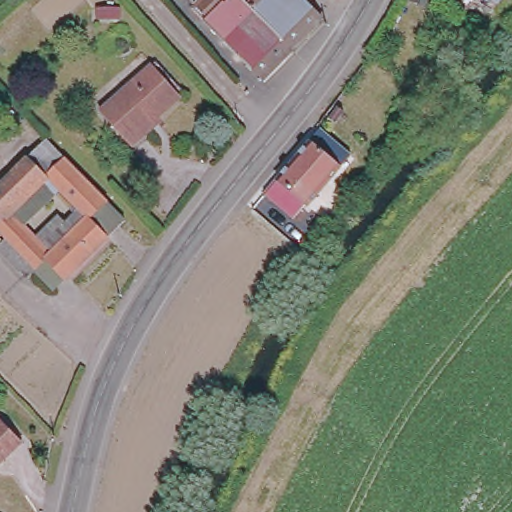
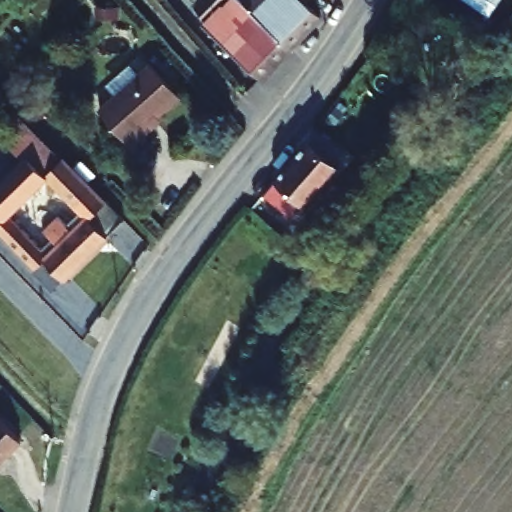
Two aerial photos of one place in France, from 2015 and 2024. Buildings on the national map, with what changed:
unchanged [(198,0),(203,0),(201,2),(198,0)]
unchanged [(269,77),(215,23),(217,18),(201,2),(203,0),(256,0),(301,44),(269,77)]
unchanged [(256,0),(313,0),(328,15),(301,44),(256,0)]
unchanged [(160,63),(184,96),(144,134),(148,137),(136,146),(108,112),(160,63)]
unchanged [(354,154),(316,199),(334,214),(326,222),(307,207),(310,203),(281,177),(323,128),(354,154)]
unchanged [(58,288),(39,268),(32,274),(3,245),(10,232),(0,222),(0,186),(33,154),(47,139),(64,158),(68,155),(128,218),(58,288)]
unchanged [(361,175),(351,166),(358,158),(369,167),(361,175)]
unchanged [(0,462),(0,409),(25,437),(0,462)]

